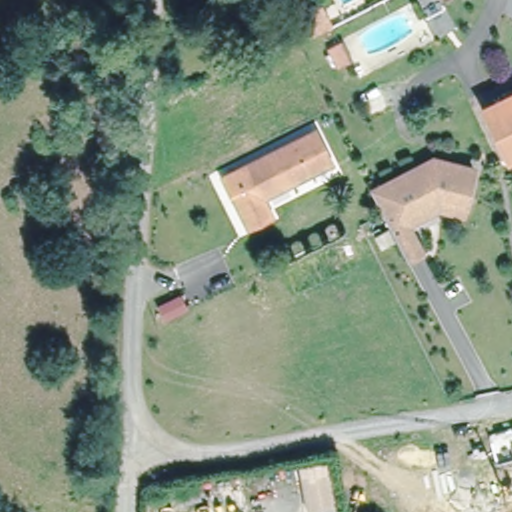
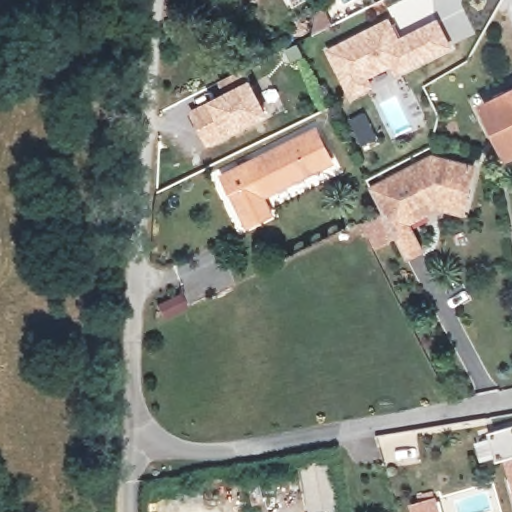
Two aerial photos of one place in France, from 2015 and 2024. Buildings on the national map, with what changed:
new [(389,17),(399,36),(438,17),(453,47),(395,76),(392,67),(371,77),(375,86),(351,99),(327,49),(389,17)]
new [(251,80),(269,116),(225,136),(208,145),(191,110),(207,100),(223,92),(218,81),(245,67),(251,80)]
unchanged [(503,156),(481,107),(512,92),(512,151),(503,156)]
unchanged [(335,162),(269,193),(277,210),(249,223),(227,173),(320,131),(335,162)]
unchanged [(393,239),(384,223),(379,213),(390,205),(379,185),(434,159),(473,172),(461,205),(447,200),(404,221),(409,230),(419,251),(403,260),(396,246),(393,239)]
new [(504,458),(498,460),(490,432),(512,426),(512,485),(504,458)]
unchanged [(328,462),(337,512),(308,512),(299,466),(328,462)]
new [(441,512),(412,512),(410,503),(437,496),(441,512)]

